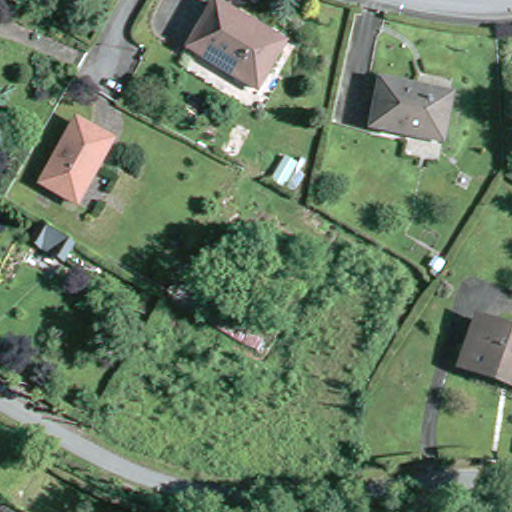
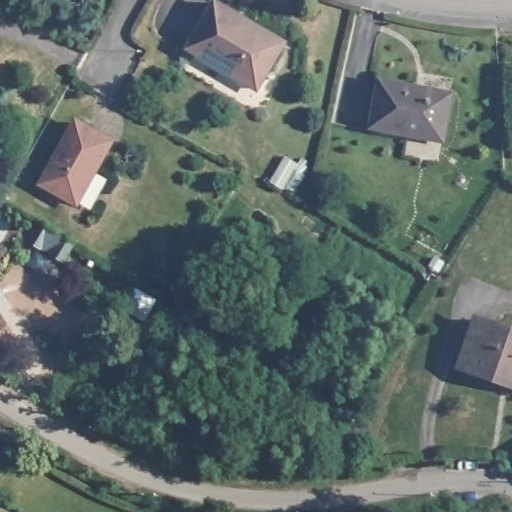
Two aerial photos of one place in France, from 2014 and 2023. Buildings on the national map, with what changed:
unchanged [(281,42),(256,88),(188,48),(214,3),(281,42)]
unchanged [(448,89),(441,131),(374,119),(379,76),(448,89)]
unchanged [(76,200),(43,180),(78,119),(111,139),(76,200)]
unchanged [(59,249),(25,228),(34,211),(53,222),(69,232),(59,249)]
unchanged [(460,364),(476,318),(512,331),(512,383),(496,378),(460,364)]
unchanged [(26,512),(0,512),(0,492),(1,491),(28,508),(26,512)]

